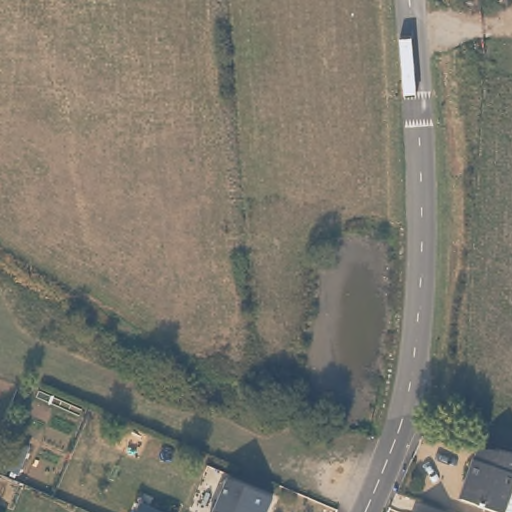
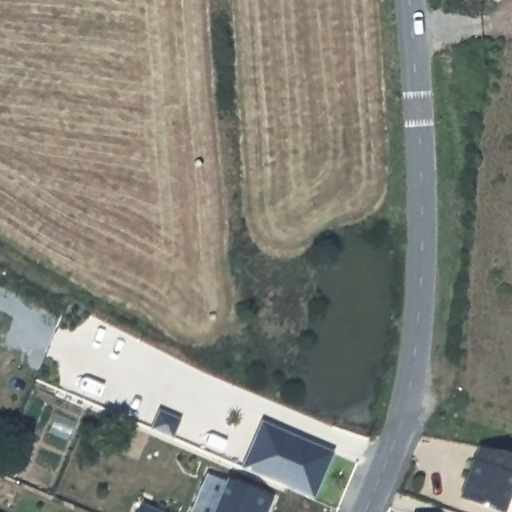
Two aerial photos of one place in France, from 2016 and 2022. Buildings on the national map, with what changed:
new [(263,420),(335,452),(314,499),(241,467),(263,420)]
unchanged [(458,499),(477,444),(512,452),(512,512),(500,512),(491,512),(458,499)]
unchanged [(227,478),(272,498),(267,512),(213,512),(227,478)]
unchanged [(144,504),(163,512),(140,512),(144,504)]

